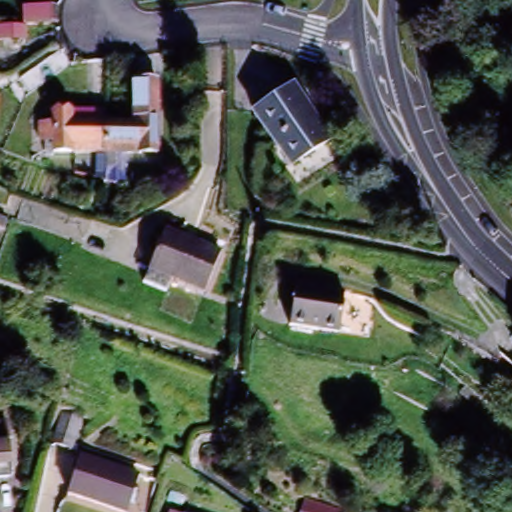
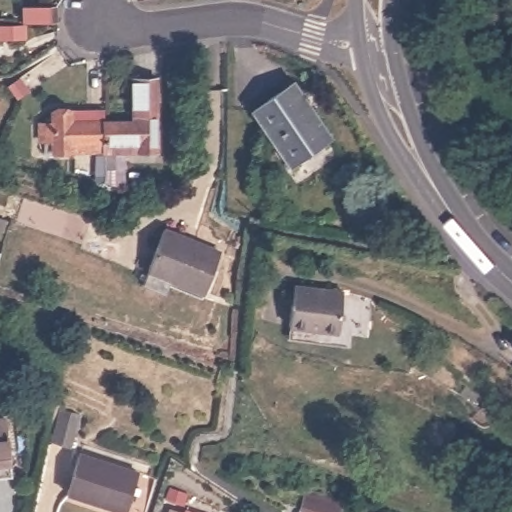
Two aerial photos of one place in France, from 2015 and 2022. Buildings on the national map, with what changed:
unchanged [(18,10),(50,10),(50,27),(18,28),(18,10)]
unchanged [(18,42),(0,42),(0,30),(18,30),(18,42)]
unchanged [(104,126),(135,126),(135,82),(159,82),(158,156),(105,156),(104,126)]
unchanged [(295,88),(326,149),(284,170),(252,110),(295,88)]
unchanged [(52,155),(52,142),(38,143),(38,127),(52,127),(52,115),(71,115),(71,126),(104,126),(105,156),(52,155)]
unchanged [(219,247),(211,289),(151,278),(159,237),(219,247)]
unchanged [(342,339),(292,331),(297,290),(347,298),(342,339)]
unchanged [(85,410),(75,440),(58,434),(67,405),(85,410)]
unchanged [(7,415),(14,470),(0,471),(0,416),(7,415)]
unchanged [(144,466),(131,505),(72,486),(85,447),(144,466)]
unchanged [(346,512),(334,512),(307,499),(315,485),(350,501),(346,512)]

